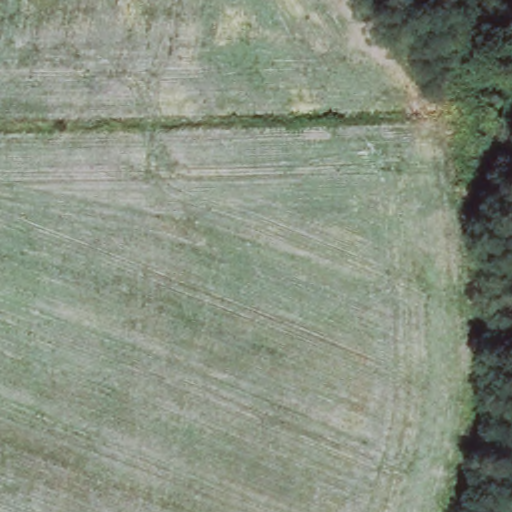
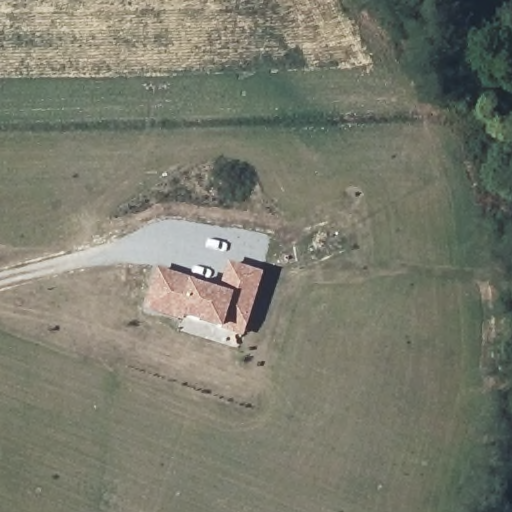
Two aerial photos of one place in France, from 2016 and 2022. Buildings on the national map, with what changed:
new [(245,337),(223,330),(181,317),(181,320),(145,309),(157,269),(197,280),(196,283),(221,291),(229,264),(264,273),(245,337)]

